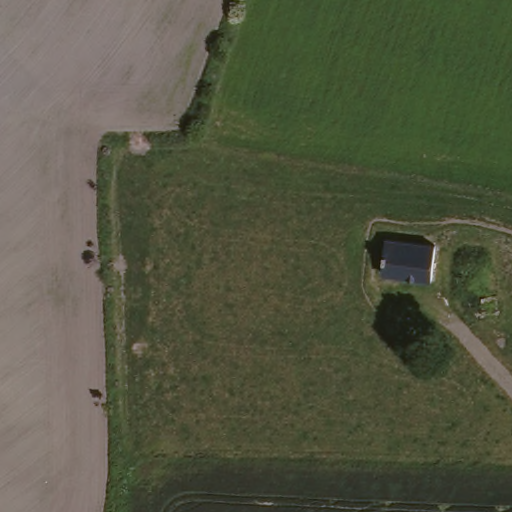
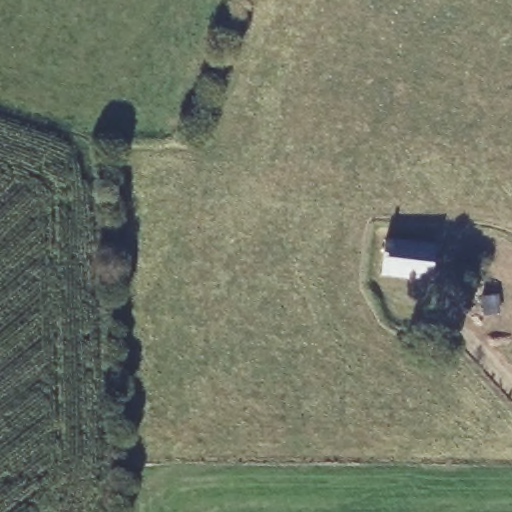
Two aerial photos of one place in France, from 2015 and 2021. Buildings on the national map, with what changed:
unchanged [(437,273),(389,268),(392,233),(441,238),(437,273)]

